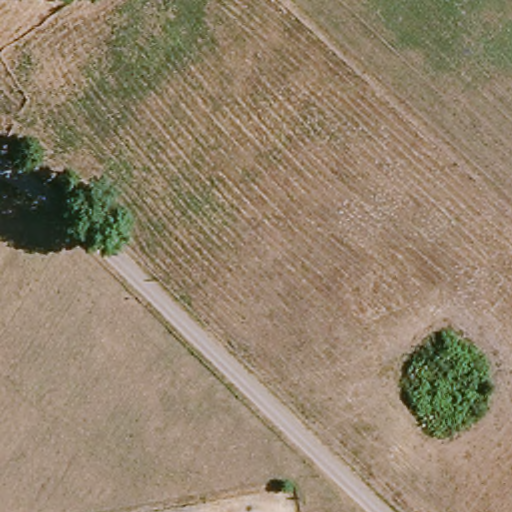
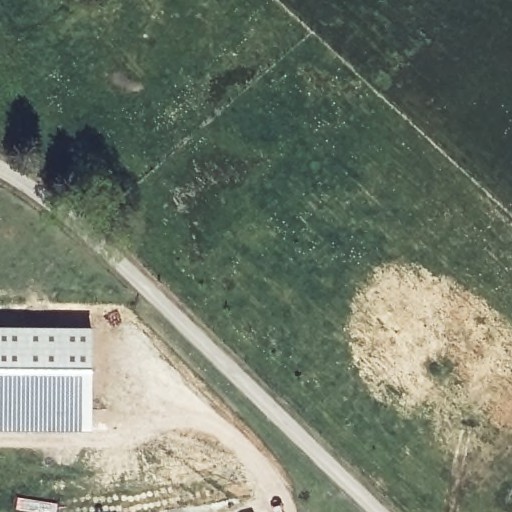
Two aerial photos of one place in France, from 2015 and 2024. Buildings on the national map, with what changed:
new [(93,431),(0,430),(0,327),(93,328),(93,431)]

